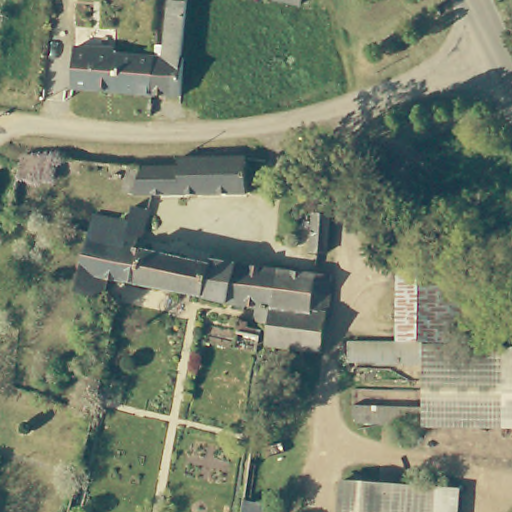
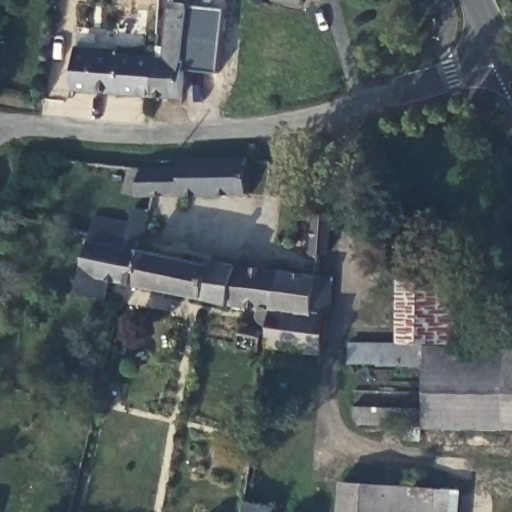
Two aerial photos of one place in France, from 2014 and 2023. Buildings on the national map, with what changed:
unchanged [(118,94),(71,90),(73,49),(113,52),(117,57),(123,58),(139,60),(154,60),(157,36),(172,39),(177,0),(197,0),(188,62),(184,97),(150,94),(150,96),(135,95),(118,94)]
unchanged [(297,2),(293,1),(288,0),(298,0),(297,2)]
new [(219,74),(187,70),(188,62),(196,9),(225,10),(219,74)]
unchanged [(57,155),(55,177),(16,173),(22,152),(57,155)]
unchanged [(253,155),(253,184),(129,194),(128,169),(149,165),(181,163),(183,153),(253,155)]
unchanged [(331,211),(323,250),(306,245),(315,207),(331,211)]
unchanged [(150,212),(141,251),(209,268),(213,261),(327,272),(318,337),(318,346),(298,345),(297,358),(270,355),(271,353),(272,342),(264,342),(265,330),(266,318),(110,280),(105,297),(75,288),(89,236),(95,215),(130,225),(136,209),(150,212)]
unchanged [(481,339),(463,339),(426,338),(421,338),(400,338),(399,250),(399,240),(456,240),(463,247),(463,311),(480,311),(481,339)]
unchanged [(400,338),(421,338),(426,338),(426,348),(427,360),(422,360),(351,358),(351,337),(400,338)]
unchanged [(512,350),(512,428),(426,426),(427,360),(426,348),(512,350)]
unchanged [(462,489),(461,512),(342,512),(343,481),(462,489)]
unchanged [(272,512),(245,512),(247,496),(273,500),(272,512)]
unchanged [(0,507),(0,502),(1,502),(0,507)]

